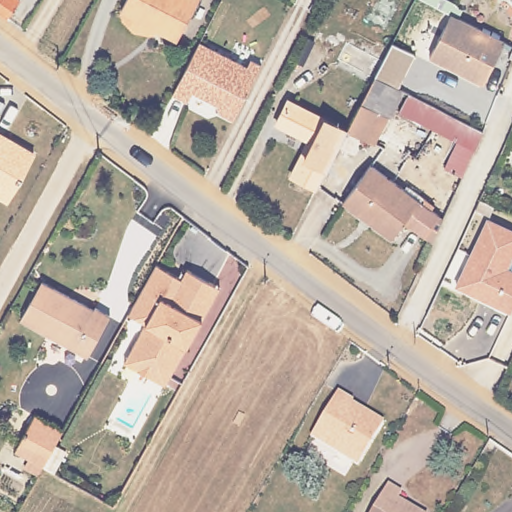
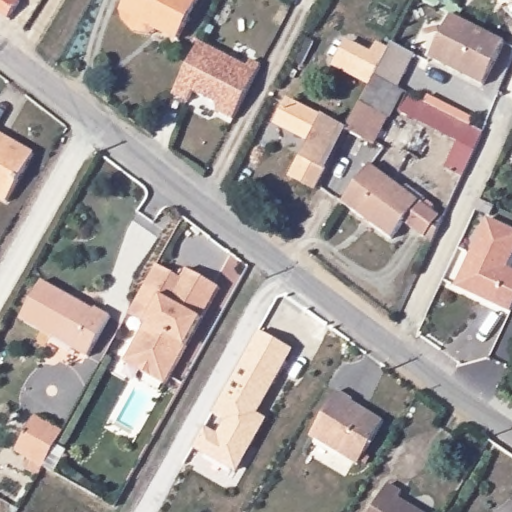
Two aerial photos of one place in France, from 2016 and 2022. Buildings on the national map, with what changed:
unchanged [(6,15),(0,11),(0,0),(16,0),(6,15)]
unchanged [(180,37),(162,26),(154,31),(137,29),(125,16),(124,5),(128,0),(199,0),(180,37)]
unchanged [(483,85),(429,59),(450,16),(504,42),(483,85)]
unchanged [(248,68),(251,62),(261,67),(233,121),(219,114),(216,105),(193,93),(188,103),(173,96),(183,77),(187,70),(200,44),(248,68)]
unchanged [(373,148),(345,133),(373,80),(373,79),(390,46),(413,57),(396,91),(401,93),(373,148)]
unchanged [(474,128),(465,146),(398,114),(407,96),(474,128)]
unchanged [(288,182),(299,162),(303,164),(311,148),(274,129),(285,107),(344,137),(320,183),(314,195),(288,182)]
unchanged [(0,194),(0,129),(35,149),(6,197),(0,194)]
unchanged [(403,193),(406,189),(431,207),(428,211),(440,220),(432,235),(428,244),(399,223),(388,238),(340,203),(367,166),(403,193)]
unchanged [(456,289),(487,222),(512,234),(512,258),(506,271),(512,274),(512,312),(511,314),(456,289)]
unchanged [(120,332),(153,275),(178,289),(183,279),(211,295),(216,297),(183,356),(161,395),(138,382),(145,369),(127,359),(134,348),(117,339),(120,332)]
unchanged [(85,356),(19,317),(41,280),(93,311),(94,308),(107,316),(85,356)]
new [(206,426),(218,432),(224,419),(213,412),(259,328),(294,348),(259,413),(268,418),(235,472),(195,448),(206,426)]
unchanged [(383,421),(355,467),(308,440),(339,390),(383,421)]
unchanged [(16,450),(36,415),(64,431),(44,467),(16,450)]
unchanged [(401,489),(397,495),(425,512),(371,512),(389,481),(401,489)]

